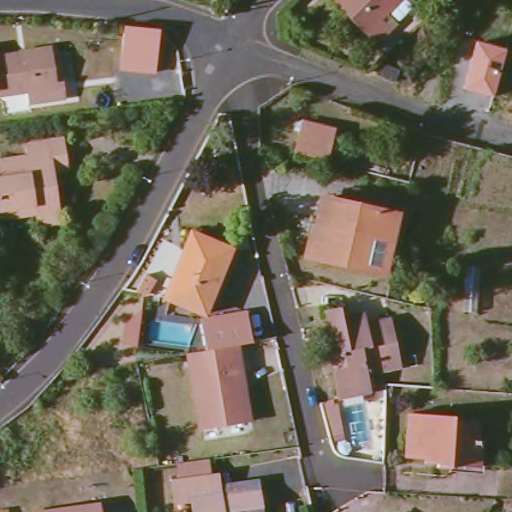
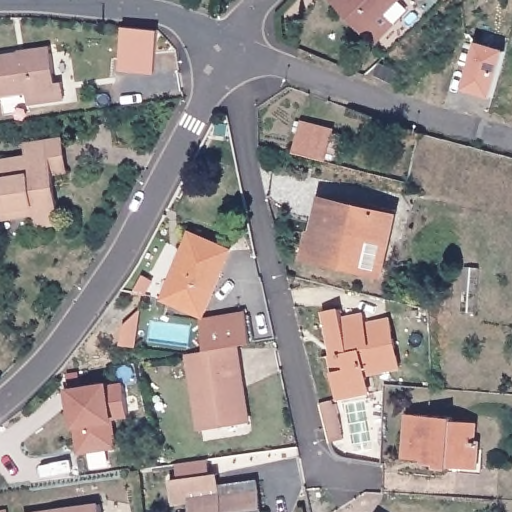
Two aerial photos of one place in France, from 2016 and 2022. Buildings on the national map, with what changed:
unchanged [(402,0),(366,37),(335,5),(339,0),(402,0)]
unchanged [(122,24),(158,28),(153,72),(117,69),(122,24)]
unchanged [(476,40),(507,47),(493,97),(463,89),(476,40)]
unchanged [(19,47),(23,50),(48,46),(52,75),(59,75),(61,90),(23,96),(21,84),(0,87),(0,49),(19,47)]
unchanged [(376,70),(391,76),(385,86),(371,80),(376,70)]
unchanged [(294,151),(303,121),(336,130),(328,161),(294,151)]
unchanged [(50,170),(52,180),(45,182),(47,196),(54,196),(57,217),(30,221),(27,209),(0,212),(0,158),(21,155),(19,143),(59,137),(65,167),(50,170)]
unchanged [(383,280),(299,260),(316,192),(400,212),(383,280)]
unchanged [(235,249),(210,314),(171,298),(196,233),(235,249)]
unchanged [(154,280),(152,294),(141,292),(143,277),(154,280)]
unchanged [(327,350),(332,348),(330,336),(328,336),(323,311),(341,307),(344,318),(365,314),(367,321),(391,317),(400,365),(368,372),(370,390),(336,396),(327,350)]
unchanged [(146,310),(142,346),(127,345),(129,326),(146,310)]
unchanged [(248,377),(241,378),(248,426),(204,432),(192,353),(209,350),(238,346),(242,346),(248,377)]
new [(109,387),(109,390),(125,387),(129,418),(112,420),(116,450),(81,453),(77,407),(71,408),(69,391),(109,387)]
unchanged [(324,398),(325,402),(329,402),(336,437),(320,440),(312,401),(324,398)]
new [(76,408),(79,422),(73,423),(71,408),(76,408)]
unchanged [(449,415),(451,417),(473,420),(469,463),(442,460),(441,466),(425,463),(425,455),(406,453),(412,410),(449,415)]
unchanged [(187,498),(171,500),(168,477),(176,476),(173,458),(207,454),(209,473),(216,472),(217,486),(234,485),(233,481),(256,479),(260,512),(189,512),(187,498)]
unchanged [(95,506),(95,512),(47,512),(95,506)]

